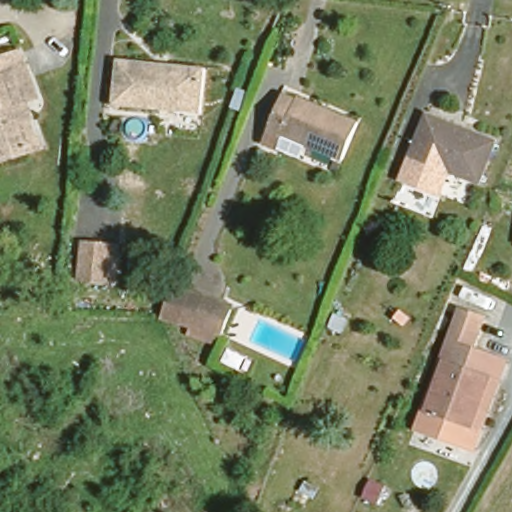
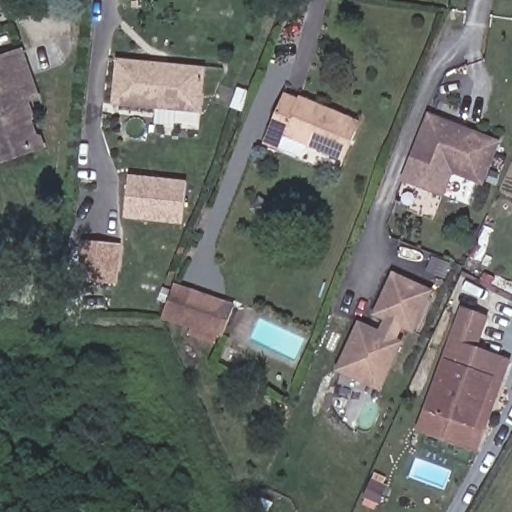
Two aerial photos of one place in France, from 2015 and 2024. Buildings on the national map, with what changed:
unchanged [(240,2),(241,0),(279,0),(265,34),(240,24),(233,21),(240,2)]
unchanged [(39,99),(27,104),(42,148),(0,165),(0,55),(17,49),(39,99)]
unchanged [(199,71),(195,114),(108,104),(112,60),(199,71)]
unchanged [(282,136),(267,130),(280,97),(296,103),(299,98),(355,121),(340,156),(306,140),(303,146),(282,136)]
unchanged [(424,119),(491,149),(474,186),(453,177),(406,157),(424,119)]
new [(406,157),(453,177),(444,198),(399,181),(406,157)]
new [(124,220),(128,175),(186,181),(182,226),(124,220)]
new [(118,284),(77,282),(81,240),(122,243),(118,284)]
new [(398,340),(403,342),(381,392),(335,372),(357,321),(379,330),(383,320),(373,315),(391,273),(433,290),(413,334),(402,330),(398,340)]
unchanged [(184,293),(231,304),(223,334),(159,320),(166,289),(184,293)]
unchanged [(472,377),(485,380),(473,428),(427,416),(446,346),(442,345),(450,313),(475,318),(467,351),(477,354),(472,377)]
unchanged [(502,360),(484,431),(473,428),(485,380),(472,377),(477,354),(502,360)]

